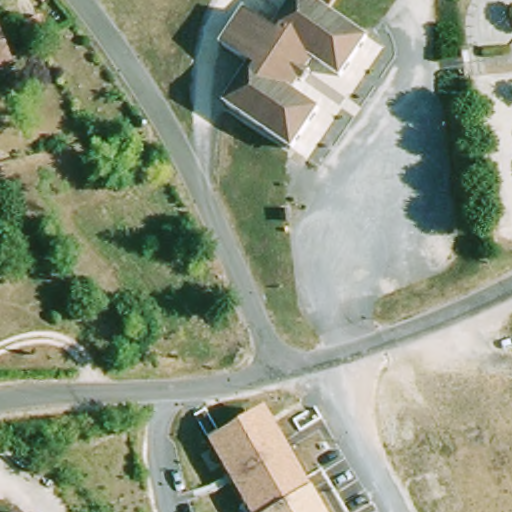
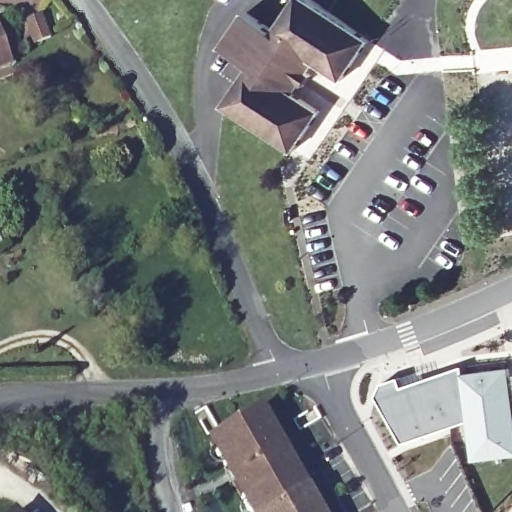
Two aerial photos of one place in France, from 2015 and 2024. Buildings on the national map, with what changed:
unchanged [(320,65),(312,76),(316,78),(309,89),(305,86),(298,96),(325,114),(297,154),(268,134),(228,107),(252,73),(255,69),(250,66),(225,50),(240,29),(250,15),(280,35),(303,0),(310,0),(374,43),(346,82),(320,65)]
unchanged [(32,19),(38,17),(56,10),(65,32),(48,40),(41,42),(32,19)]
unchanged [(0,27),(10,24),(25,59),(0,69),(0,27)]
new [(383,382),(400,375),(404,385),(463,365),(464,372),(512,365),(512,457),(472,462),(465,422),(403,443),(377,394),(383,382)]
unchanged [(208,438),(262,407),(308,487),(265,512),(250,512),(208,438)]
unchanged [(308,487),(322,512),(265,512),(308,487)]

